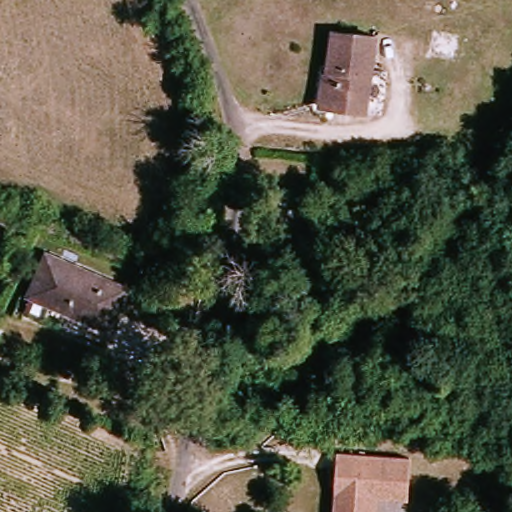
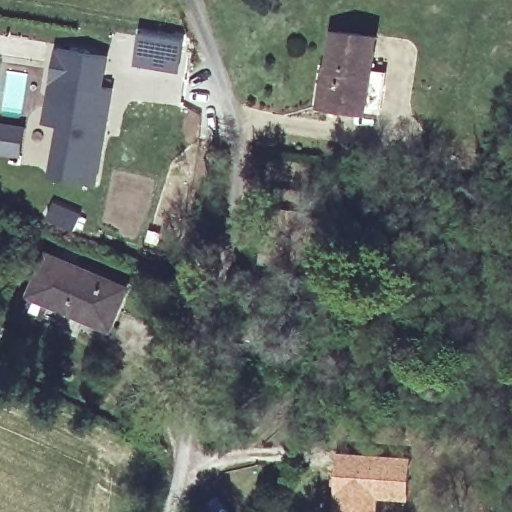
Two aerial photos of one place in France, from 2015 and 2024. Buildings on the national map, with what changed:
new [(137,26),(185,35),(180,75),(130,66),(137,26)]
unchanged [(383,114),(364,111),(330,105),(319,104),(324,72),(329,72),(336,30),(376,36),(371,70),(389,73),(383,114)]
new [(92,185),(50,177),(59,126),(42,123),(48,84),(55,49),(105,58),(99,88),(109,90),(103,124),(101,135),(92,185)]
new [(24,128),(20,155),(4,153),(0,152),(0,124),(24,128)]
unchanged [(301,266),(265,261),(275,190),(310,195),(301,266)]
unchanged [(79,316),(40,298),(61,253),(135,290),(117,325),(114,333),(79,316)]
unchanged [(405,501),(375,499),(374,512),(331,512),(335,454),(407,459),(405,501)]

